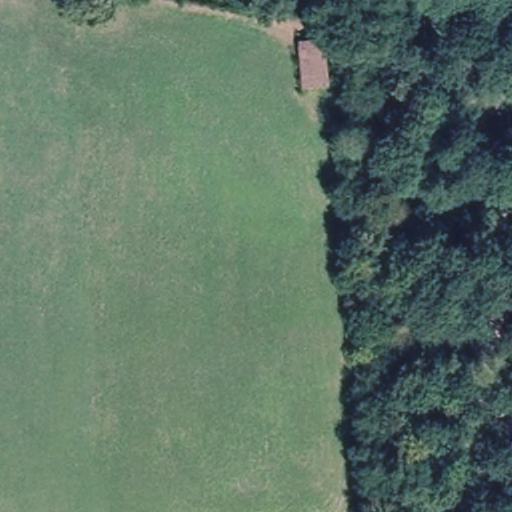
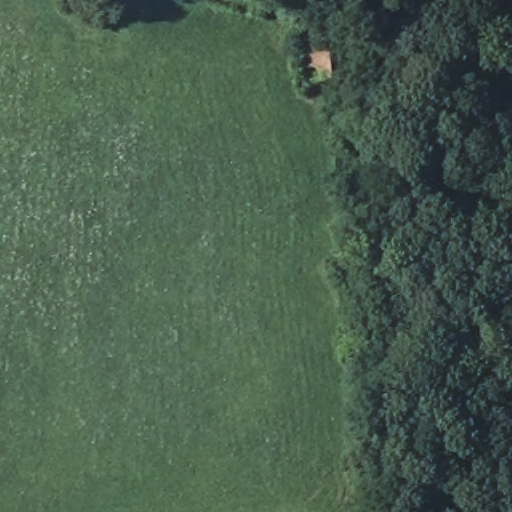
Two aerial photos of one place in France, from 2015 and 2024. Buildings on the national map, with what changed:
unchanged [(330,37),(333,79),(309,82),(305,40),(330,37)]

